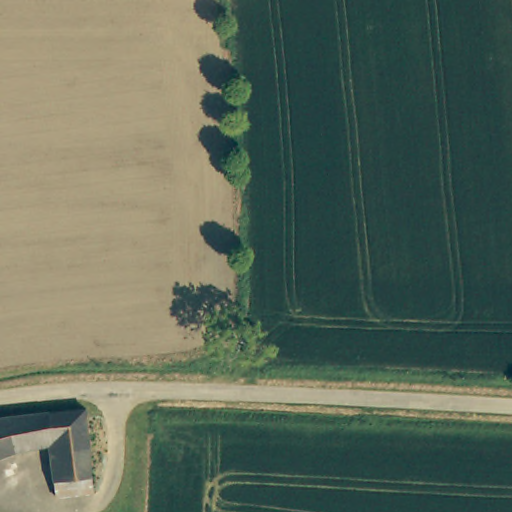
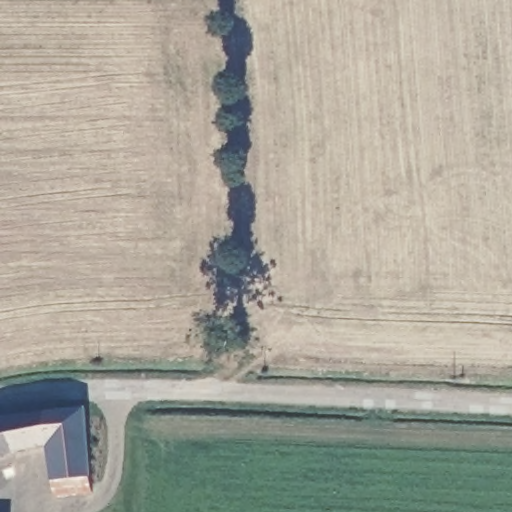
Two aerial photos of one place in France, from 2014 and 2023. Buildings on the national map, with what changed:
unchanged [(21,415),(94,407),(98,490),(61,491),(59,441),(25,445),(0,453),(0,418),(5,417),(21,415)]

